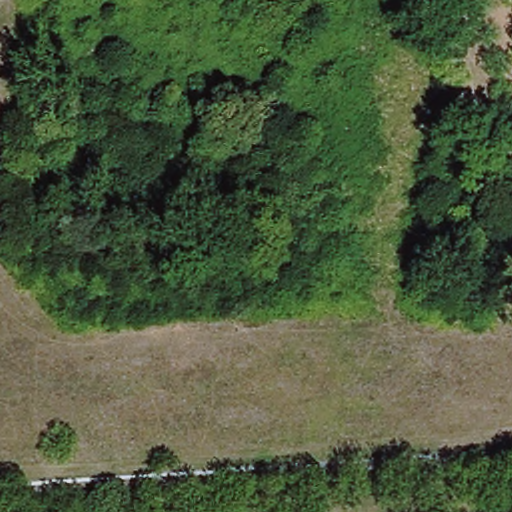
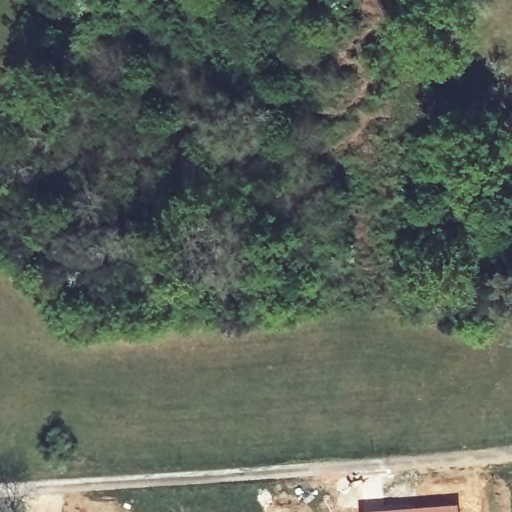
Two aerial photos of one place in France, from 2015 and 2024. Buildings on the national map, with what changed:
new [(458,512),(357,512),(357,511),(458,503),(458,512)]

